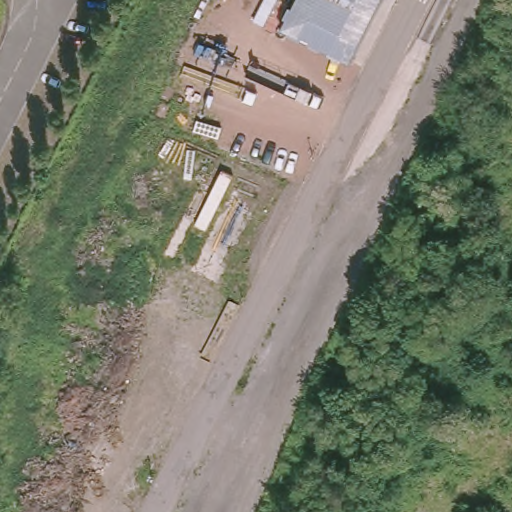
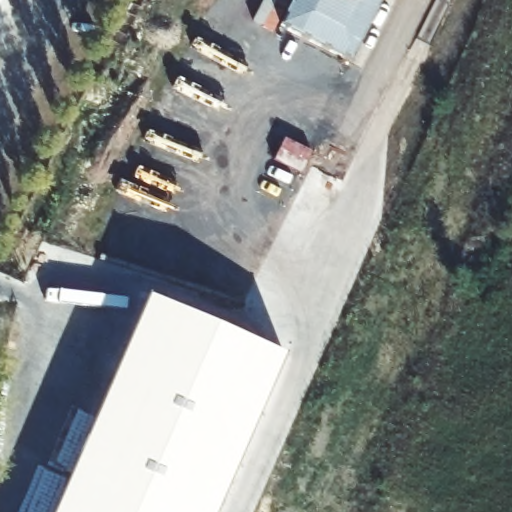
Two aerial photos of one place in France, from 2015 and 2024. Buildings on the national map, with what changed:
unchanged [(346,56),(285,24),(297,0),(373,0),(346,56)]
new [(284,355),(216,512),(55,512),(148,298),(284,355)]

